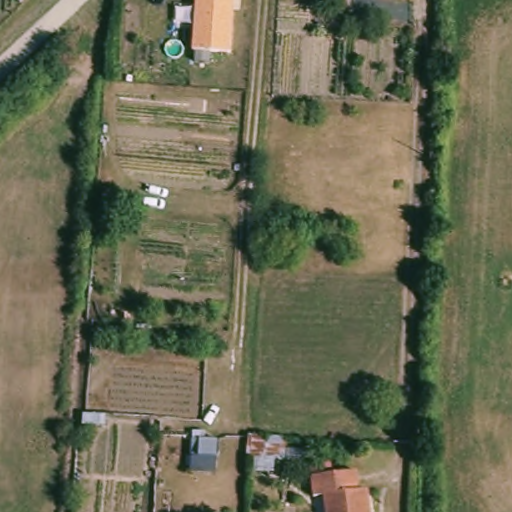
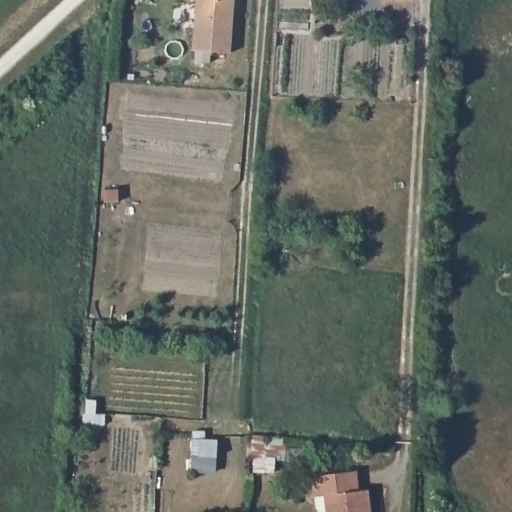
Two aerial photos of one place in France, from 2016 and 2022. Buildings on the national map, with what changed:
unchanged [(231,47),(194,45),(197,0),(235,0),(231,47)]
unchanged [(119,190),(119,202),(106,202),(106,190),(119,190)]
unchanged [(201,438),(218,440),(217,473),(198,472),(201,438)]
unchanged [(322,512),(320,491),(310,492),(307,472),(306,461),(327,458),(328,469),(353,466),(355,486),(364,485),(367,512),(322,512)]

